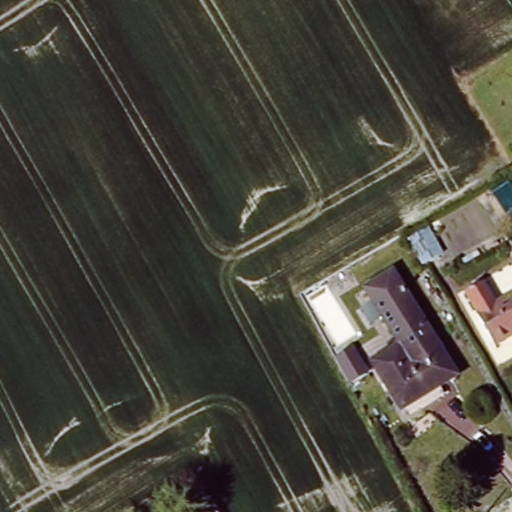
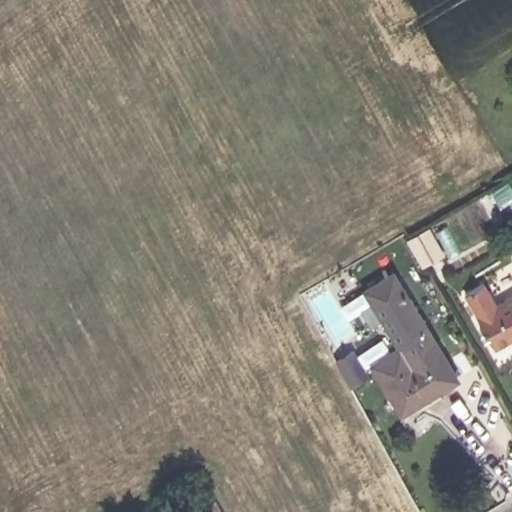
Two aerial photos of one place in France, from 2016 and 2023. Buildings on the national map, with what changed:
unchanged [(380,321),(371,328),(361,310),(369,304),(361,290),(394,268),(431,325),(426,331),(397,348),(380,321)]
unchanged [(498,301),(512,294),(512,342),(495,351),(464,295),(487,282),(498,301)]
unchanged [(424,332),(426,331),(429,335),(452,374),(441,382),(444,388),(409,409),(407,404),(397,408),(371,364),(417,336),(419,335),(424,332)]

